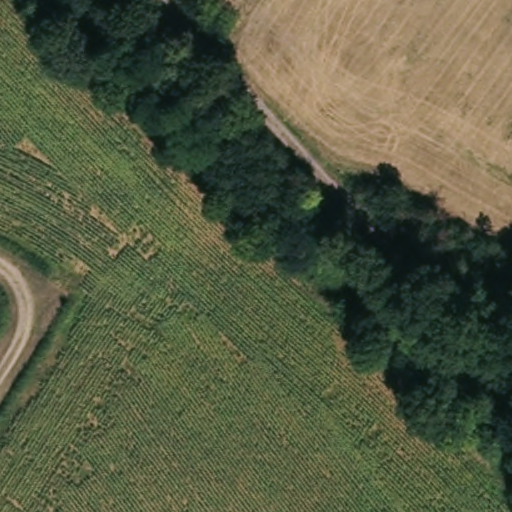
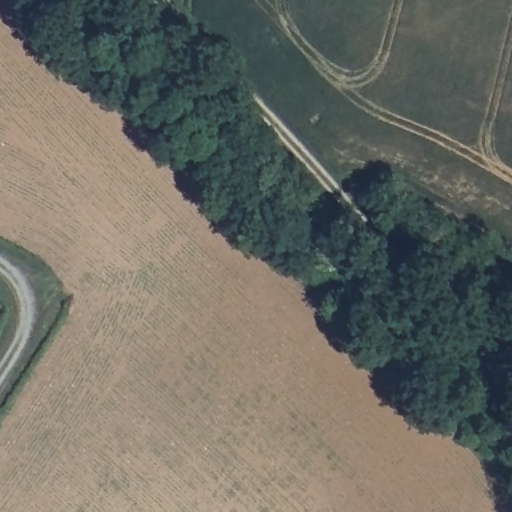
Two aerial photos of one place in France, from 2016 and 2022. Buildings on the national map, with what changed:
[]

